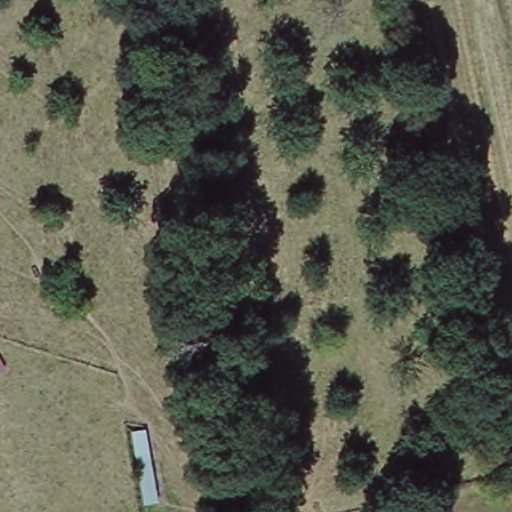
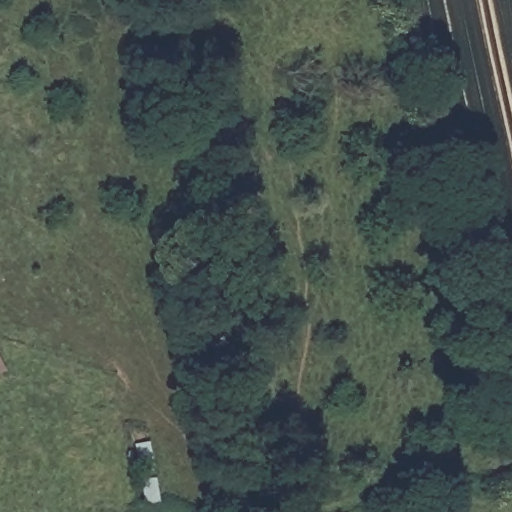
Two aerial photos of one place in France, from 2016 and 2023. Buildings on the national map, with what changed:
unchanged [(149,426),(161,499),(142,504),(131,431),(149,426)]

